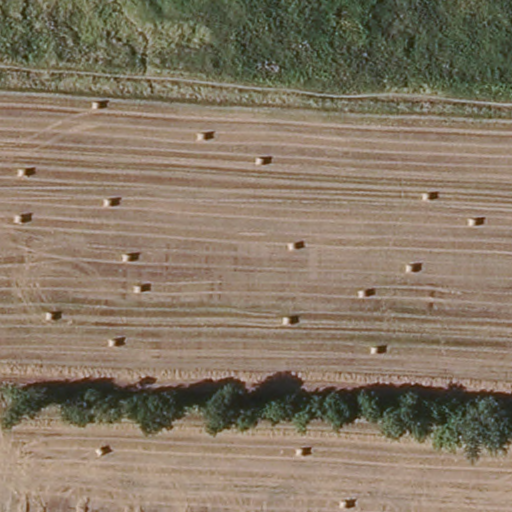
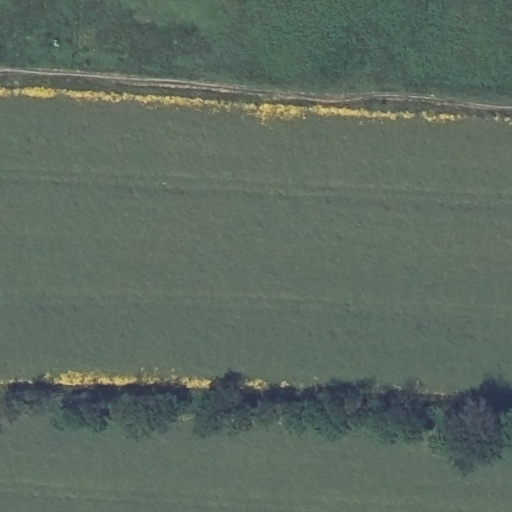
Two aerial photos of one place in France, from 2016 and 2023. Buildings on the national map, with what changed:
[]

